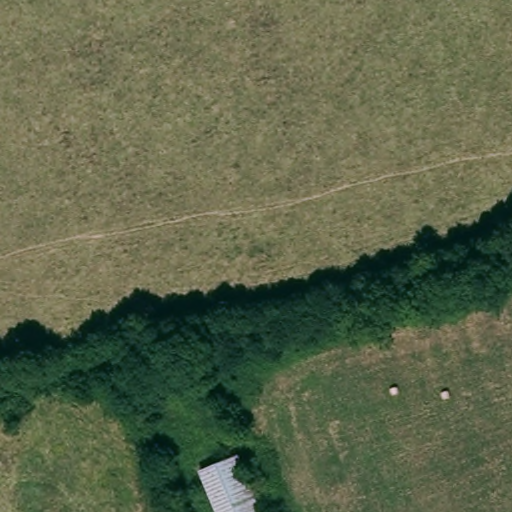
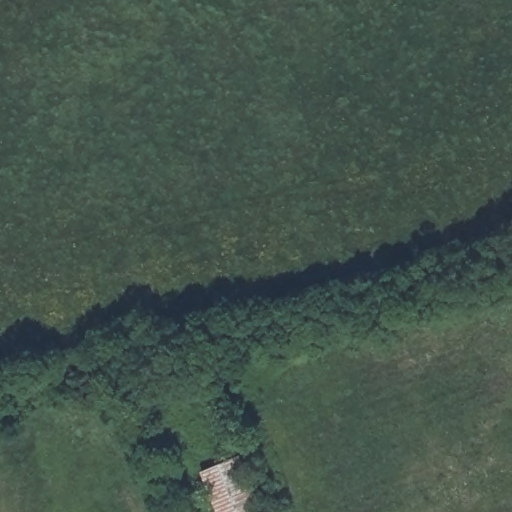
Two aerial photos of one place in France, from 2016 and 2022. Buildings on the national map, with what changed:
unchanged [(261,512),(215,512),(198,471),(238,455),(261,512)]

